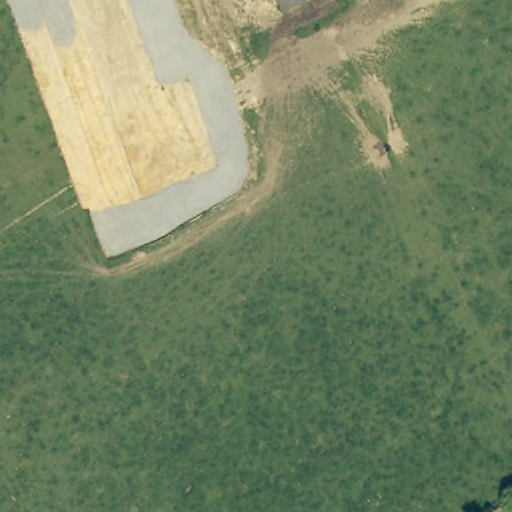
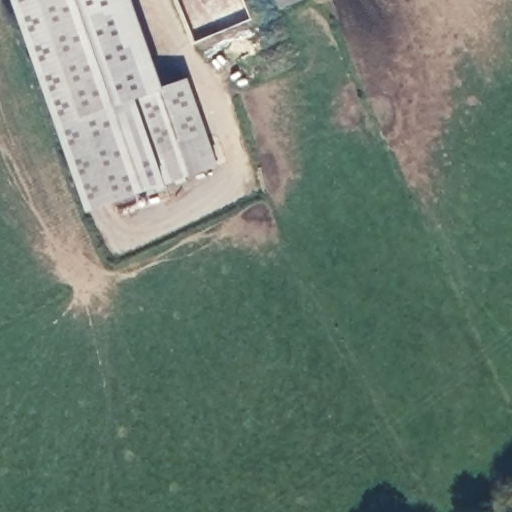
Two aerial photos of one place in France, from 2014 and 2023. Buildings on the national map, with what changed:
new [(161,85),(187,78),(218,167),(166,184),(86,211),(13,0),(131,0),(161,85)]
unchanged [(285,9),(281,0),(306,0),(285,9)]

